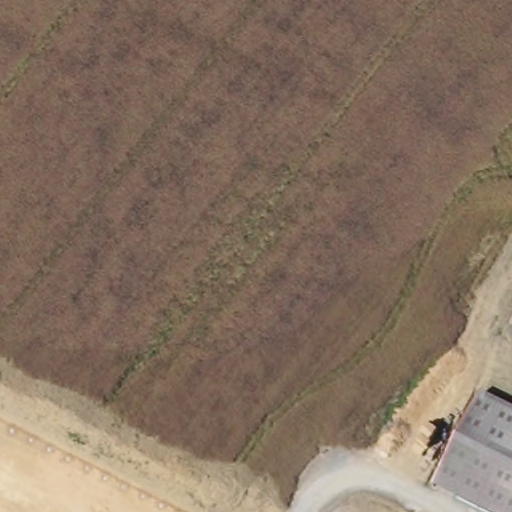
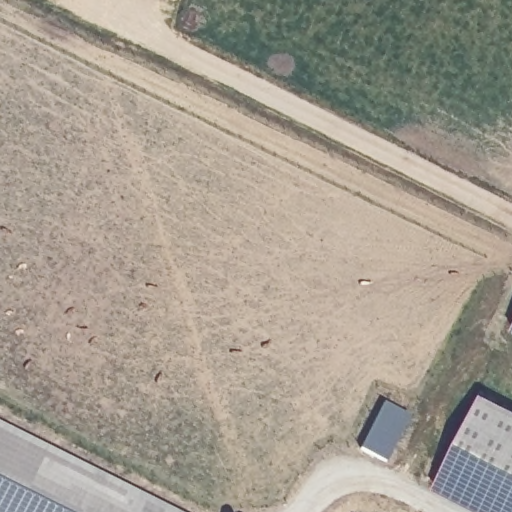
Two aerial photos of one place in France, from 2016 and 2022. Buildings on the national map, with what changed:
unchanged [(481,393),(512,410),(512,512),(486,512),(435,485),(481,393)]
new [(360,449),(384,402),(410,416),(387,461),(360,449)]
new [(0,512),(0,422),(177,512),(0,512)]

